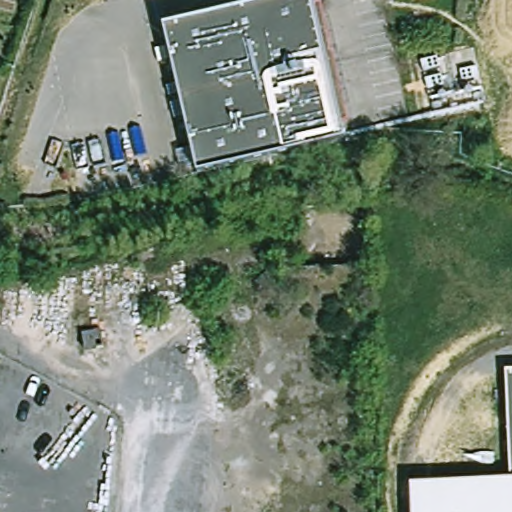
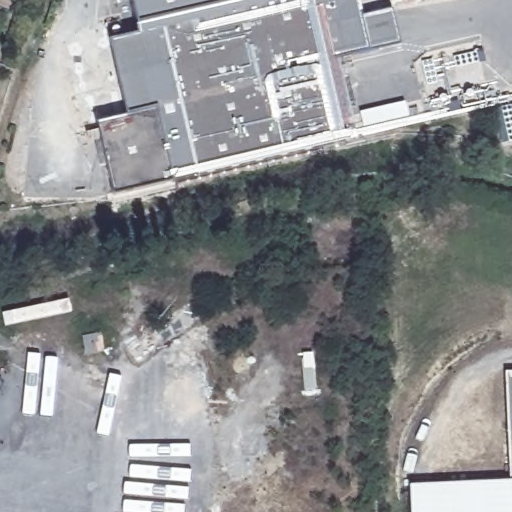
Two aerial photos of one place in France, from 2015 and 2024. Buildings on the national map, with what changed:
new [(164,32),(199,181),(175,184),(114,196),(97,124),(127,115),(110,41),(139,35),(137,25),(131,0),(304,0),(296,2),(164,32)]
unchanged [(164,32),(296,2),(304,0),(313,0),(332,83),(347,148),(199,181),(164,32)]
new [(357,0),(362,18),(391,11),(399,45),(369,51),(327,61),(313,0),(357,0)]
unchanged [(106,348),(86,353),(81,336),(101,330),(106,348)]
unchanged [(512,376),(512,425),(510,377),(512,376)]
unchanged [(415,491),(512,487),(512,512),(415,512),(415,491)]

